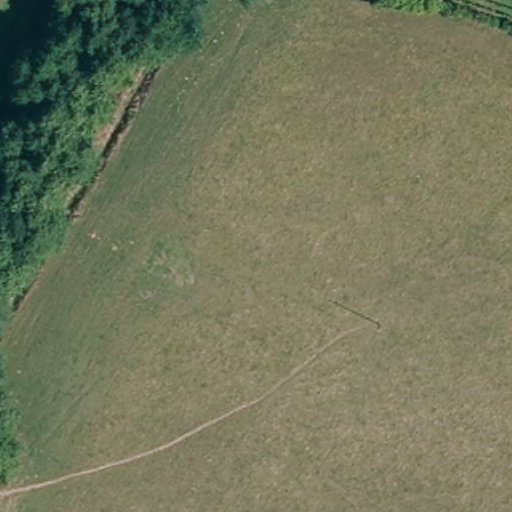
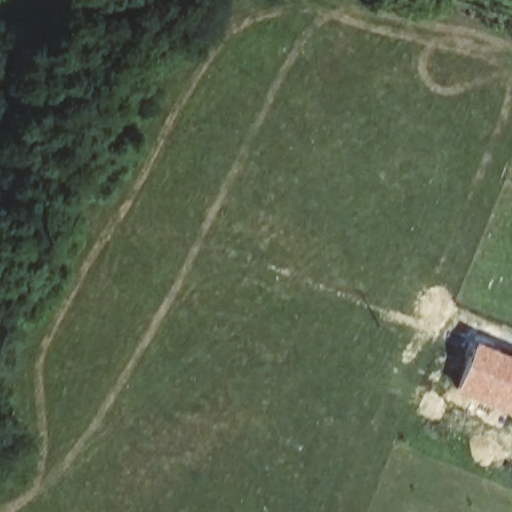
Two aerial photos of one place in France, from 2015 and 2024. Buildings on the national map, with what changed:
new [(472,342),(512,359),(512,400),(506,415),(452,391),(472,342)]

